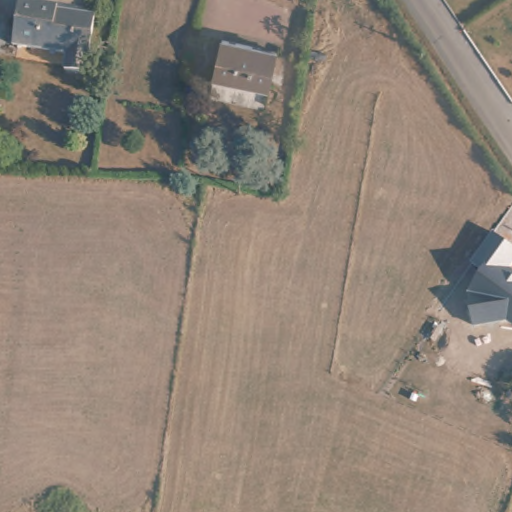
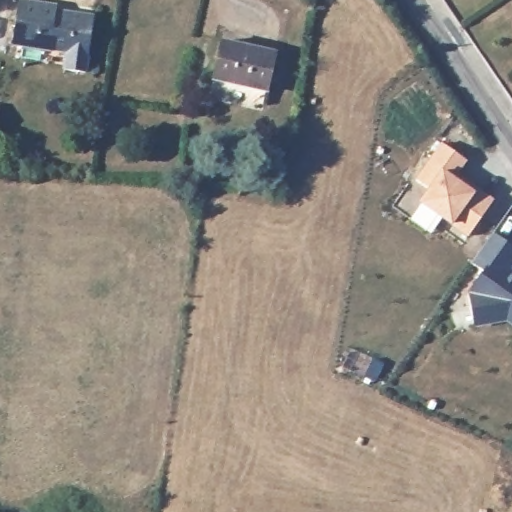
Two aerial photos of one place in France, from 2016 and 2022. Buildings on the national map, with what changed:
unchanged [(86,68),(66,66),(67,47),(14,40),(20,0),(40,0),(60,3),(60,8),(95,14),(86,68)]
unchanged [(271,47),(265,87),(212,80),(218,39),(271,47)]
new [(468,237),(418,202),(427,189),(415,180),(440,143),(466,160),(457,174),(494,200),(468,237)]
unchanged [(469,290),(481,274),(470,268),(494,234),(512,246),(512,324),(508,322),(476,327),(469,290)]

